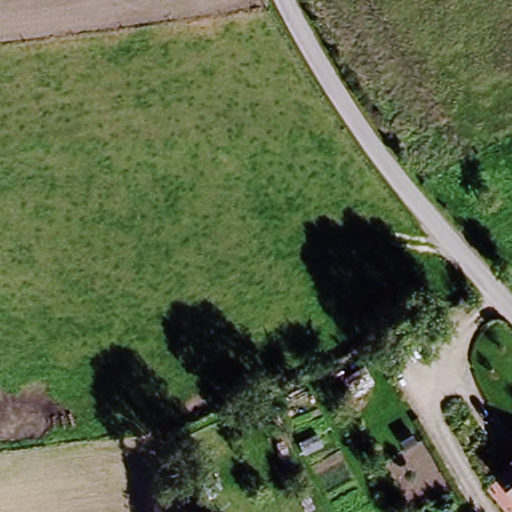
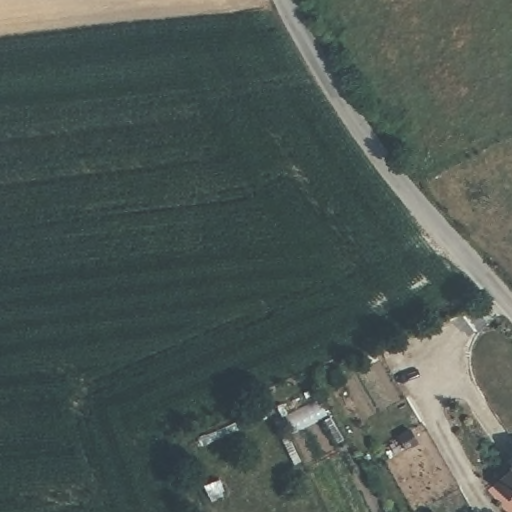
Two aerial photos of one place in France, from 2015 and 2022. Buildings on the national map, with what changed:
unchanged [(509,469),(506,466),(512,461),(512,502),(494,480),(509,469)]

